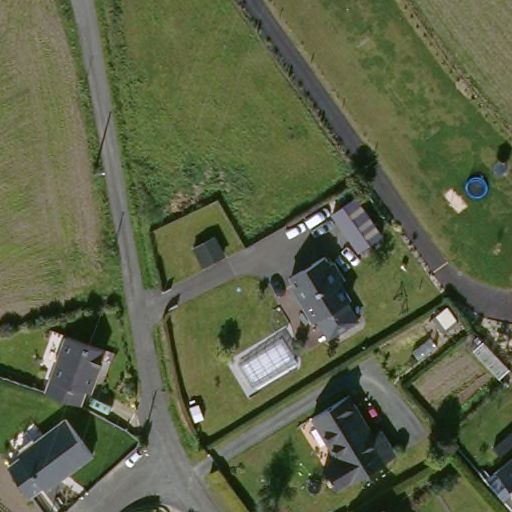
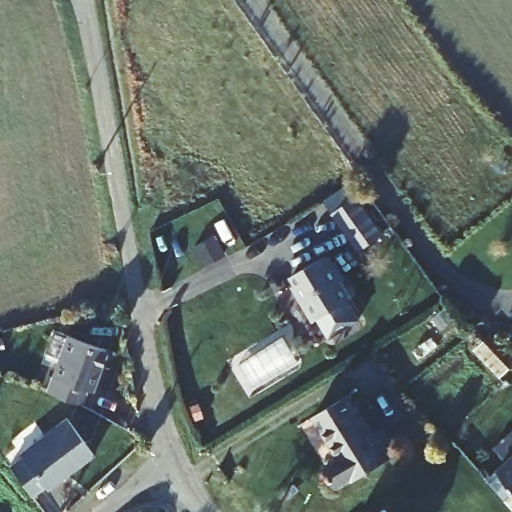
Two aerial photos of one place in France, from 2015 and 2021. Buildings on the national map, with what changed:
unchanged [(341,212),(365,195),(392,234),(367,250),(341,212)]
unchanged [(335,246),(342,256),(347,262),(341,267),(352,282),(347,285),(360,302),(330,324),(317,306),(313,309),(297,287),(290,277),(295,274),(286,262),(320,238),(328,251),(335,246)]
unchanged [(200,258),(217,247),(226,262),(209,273),(200,258)]
unchanged [(107,347),(95,388),(90,386),(86,401),(52,391),(67,335),(107,347)]
unchanged [(6,373),(0,374),(0,343),(1,342),(6,373)]
unchanged [(354,398),(387,438),(394,432),(408,448),(366,482),(361,476),(342,491),(330,474),(347,460),(318,424),(354,398)]
unchanged [(20,458),(17,455),(63,421),(89,455),(44,489),(41,486),(29,495),(7,467),(20,458)]
unchanged [(502,473),(512,463),(512,484),(502,473)]
unchanged [(392,512),(390,512),(392,511),(392,512)]

